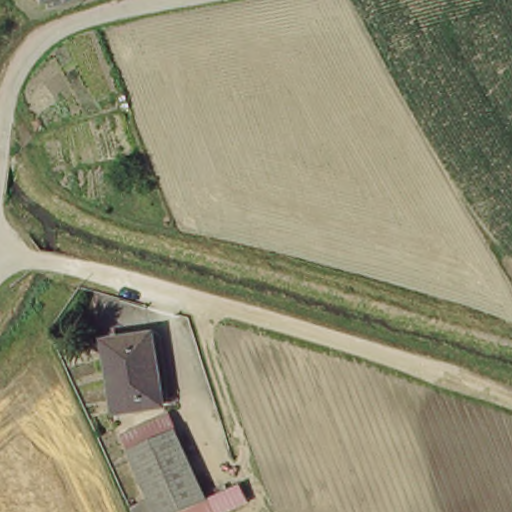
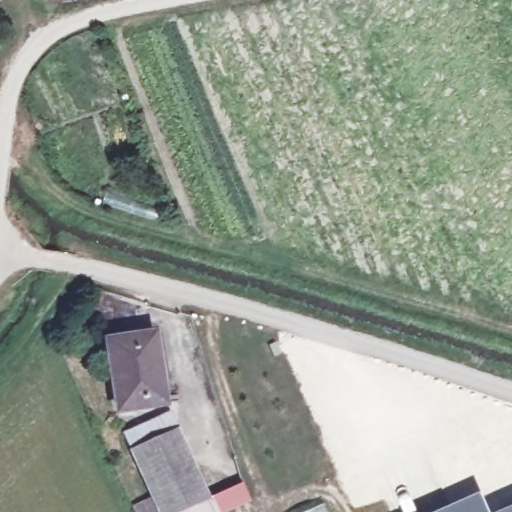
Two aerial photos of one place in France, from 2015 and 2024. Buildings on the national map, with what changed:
unchanged [(0,0),(8,0),(0,4),(0,0)]
unchanged [(171,403),(125,411),(113,340),(159,332),(171,403)]
unchanged [(127,433),(175,412),(184,430),(135,451),(127,433)]
unchanged [(156,497),(135,451),(184,430),(215,498),(243,485),(250,503),(232,512),(162,512),(156,497)]
new [(480,489),(490,512),(430,512),(480,489)]
unchanged [(131,509),(156,497),(162,512),(132,512),(131,509)]
new [(323,503),(327,512),(303,512),(323,503)]
new [(512,504),(512,512),(494,512),(512,504)]

